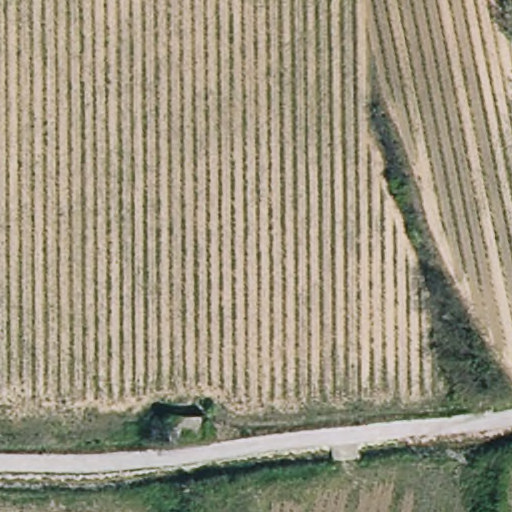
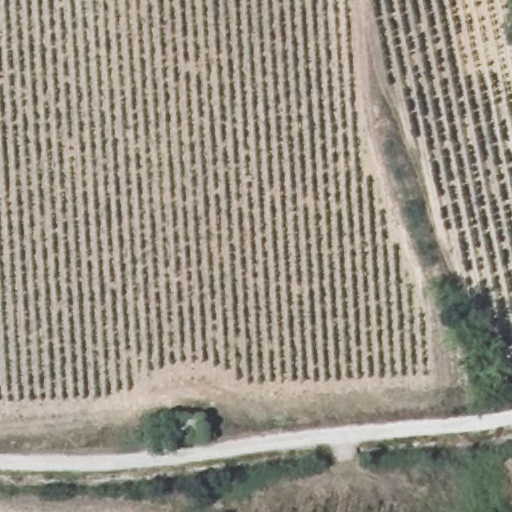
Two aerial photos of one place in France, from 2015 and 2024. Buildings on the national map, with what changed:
unchanged [(167,415),(207,415),(206,442),(205,442),(167,442),(167,415)]

